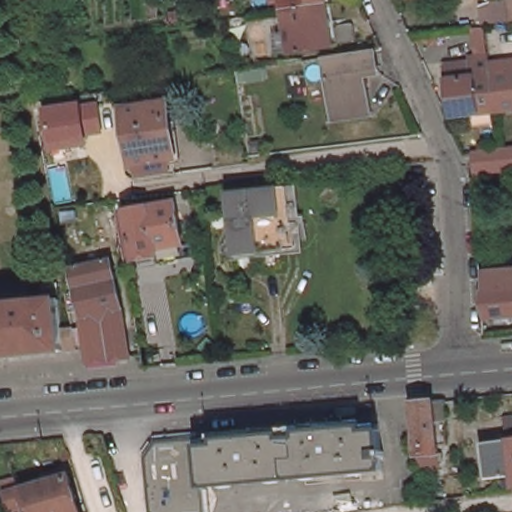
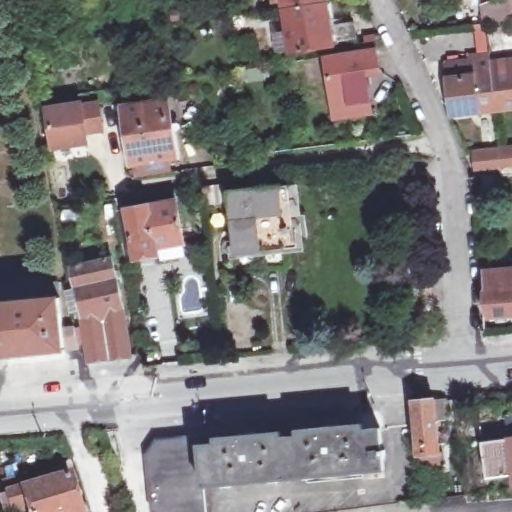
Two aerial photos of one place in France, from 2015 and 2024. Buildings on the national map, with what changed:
unchanged [(339,7),(342,29),(360,26),(362,45),(345,47),(345,51),(299,59),(292,15),(289,0),(337,0),(339,7)]
unchanged [(510,20),(481,25),(479,10),(491,2),(508,0),(507,0),(512,0),(512,20),(510,20)]
unchanged [(341,121),(340,110),(333,63),(384,55),(386,74),(374,76),(378,105),(380,116),(341,121)]
unchanged [(480,69),(481,80),(495,79),(494,68),(512,66),(512,115),(500,116),(458,121),(452,72),(480,69)]
unchanged [(80,103),(97,101),(103,130),(88,133),(90,146),(53,154),(46,110),(80,103)]
unchanged [(174,103),(181,159),(139,164),(132,109),(174,103)]
unchanged [(501,150),(503,166),(476,170),(475,152),(501,150)]
unchanged [(287,199),(303,197),(310,258),(243,265),(236,208),(214,211),(212,192),(239,189),(285,183),(287,199)]
unchanged [(118,205),(123,204),(127,226),(131,253),(109,257),(100,206),(118,205)]
unchanged [(133,225),(132,216),(184,207),(192,256),(142,265),(142,264),(133,266),(131,253),(127,226),(133,225)]
unchanged [(497,260),(498,271),(512,270),(512,318),(495,320),(491,260),(497,260)]
unchanged [(118,263),(128,306),(136,361),(94,366),(93,353),(90,329),(78,272),(118,263)]
unchanged [(86,354),(0,363),(0,296),(64,290),(69,332),(82,331),(86,354)]
unchanged [(427,470),(425,458),(419,395),(451,393),(454,416),(442,417),(447,456),(448,468),(427,470)]
unchanged [(512,415),(512,439),(510,415),(512,415)]
unchanged [(155,512),(149,459),(160,442),(201,438),(202,446),(243,443),(242,436),(257,436),(257,441),(324,435),(324,430),(339,428),(340,434),(381,431),(384,450),(387,450),(387,455),(384,455),(385,470),(206,486),(208,512),(155,512)]
unchanged [(490,441),(512,439),(512,476),(495,478),(490,441)]
unchanged [(41,512),(39,506),(24,511),(17,488),(79,470),(92,508),(79,512),(41,512)]
unchanged [(93,512),(79,512),(92,508),(93,512)]

